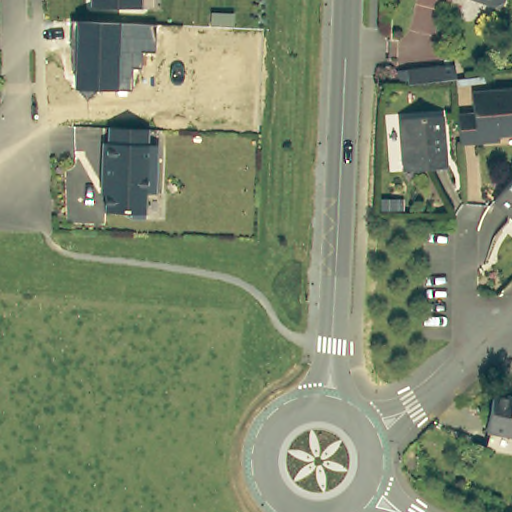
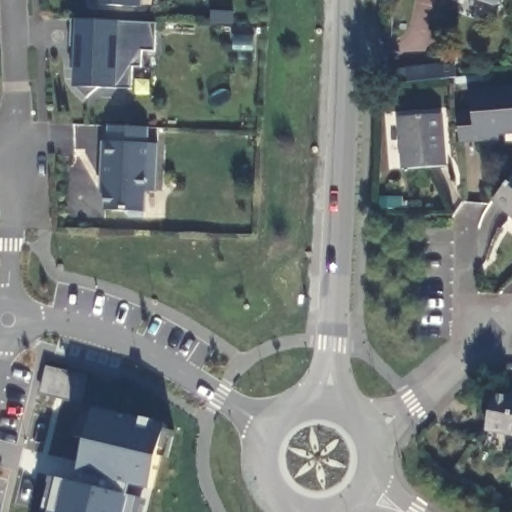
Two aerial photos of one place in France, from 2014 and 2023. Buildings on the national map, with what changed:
unchanged [(144,9),(94,7),(94,0),(144,0),(144,9)]
unchanged [(501,2),(493,6),(474,0),(502,0),(501,2)]
unchanged [(72,20),(77,22),(119,23),(155,25),(154,51),(141,51),(141,67),(130,67),(130,90),(116,90),(95,89),(86,100),(74,88),(74,46),(70,46),(72,20)]
unchanged [(392,69),(405,68),(437,66),(439,80),(406,83),(393,83),(392,69)]
unchanged [(475,88),(512,86),(512,129),(501,130),(500,134),(463,138),(461,110),(476,109),(475,88)]
unchanged [(443,167),(403,169),(398,118),(440,116),(443,167)]
unchanged [(164,191),(154,190),(152,216),(137,215),(132,210),(112,210),(114,179),(109,179),(110,141),(115,141),(115,125),(155,127),(155,142),(165,143),(164,191)]
unchanged [(506,213),(491,200),(512,176),(512,214),(508,211),(506,213)]
unchanged [(492,395),(512,400),(512,439),(485,433),(492,395)]
new [(171,429),(165,457),(157,456),(149,490),(144,499),(141,512),(42,512),(40,511),(48,474),(79,481),(81,472),(78,471),(80,459),(85,440),(78,438),(86,405),(163,424),(162,428),(171,429)]

